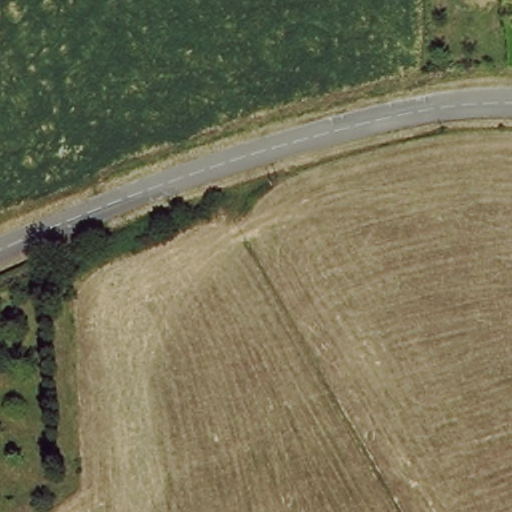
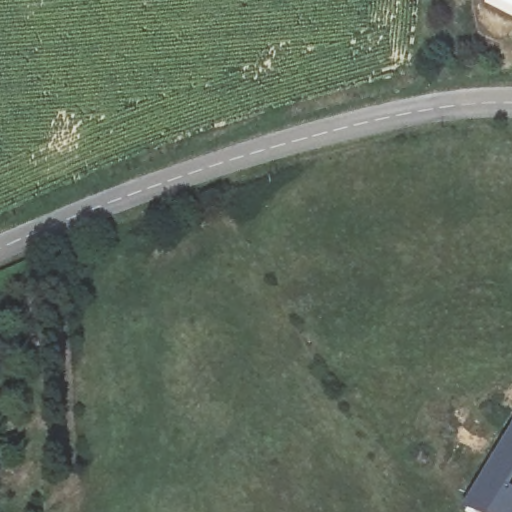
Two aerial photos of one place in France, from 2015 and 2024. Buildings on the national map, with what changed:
new [(512,493),(512,512),(489,512),(469,501),(512,430),(512,490),(510,492),(512,493)]

